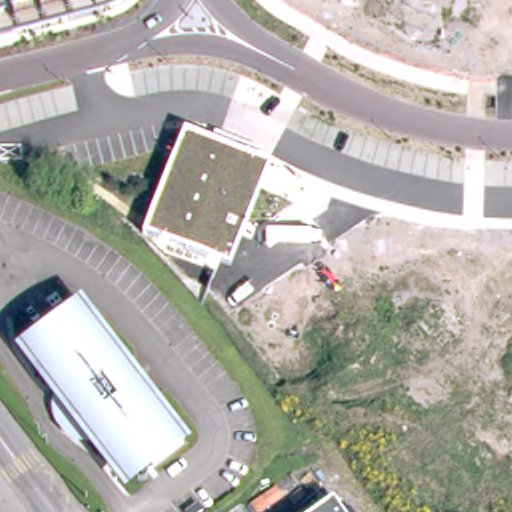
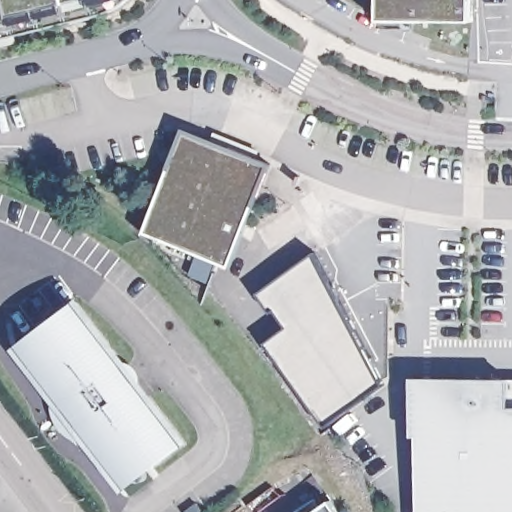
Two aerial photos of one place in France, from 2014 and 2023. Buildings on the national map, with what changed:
unchanged [(123,3),(110,10),(0,38),(0,0),(126,0),(123,3)]
new [(472,20),(380,21),(380,0),(473,0),(472,20)]
unchanged [(272,165),(232,268),(143,232),(185,131),(272,165)]
new [(317,258),(387,391),(326,435),(265,350),(287,333),(276,318),(272,320),(257,301),(317,258)]
unchanged [(185,439),(155,462),(150,457),(140,466),(135,461),(125,468),(100,437),(100,438),(92,429),(84,437),(55,400),(65,392),(57,383),(59,382),(35,351),(45,343),(41,337),(52,329),(48,323),(78,301),(185,439)]
new [(414,435),(414,377),(512,377),(512,512),(418,512),(419,436),(414,435)]
unchanged [(347,512),(312,512),(335,496),(347,512)]
unchanged [(195,512),(199,509),(201,512),(195,512)]

